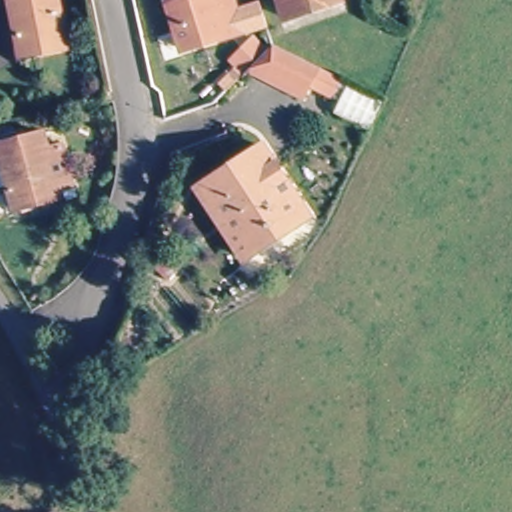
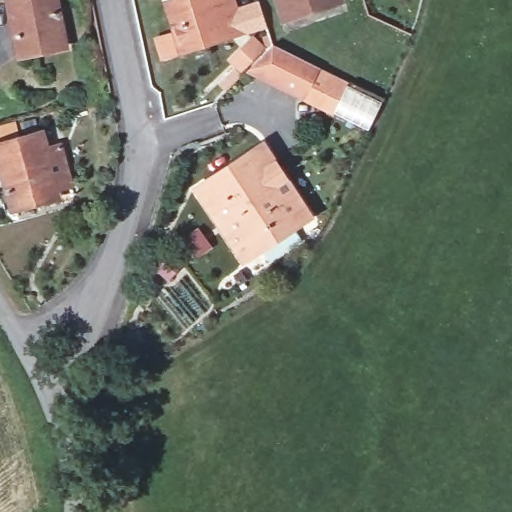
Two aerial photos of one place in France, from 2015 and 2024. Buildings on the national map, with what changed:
unchanged [(17,34),(13,0),(63,0),(65,12),(69,50),(35,54),(17,56),(17,34)]
unchanged [(267,28),(176,48),(166,0),(235,0),(237,7),(260,1),(267,28)]
unchanged [(284,14),(280,0),(336,0),(284,14)]
unchanged [(308,88),(301,102),(249,71),(236,85),(223,72),(246,43),(261,56),(268,46),(318,68),(342,80),(331,101),(308,88)]
unchanged [(10,214),(1,180),(0,178),(0,147),(45,135),(48,150),(65,145),(77,185),(56,191),(59,199),(10,214)]
unchanged [(242,162),(264,147),(313,218),(268,247),(242,162)]
unchanged [(244,262),(199,191),(242,162),(268,247),(244,262)]

